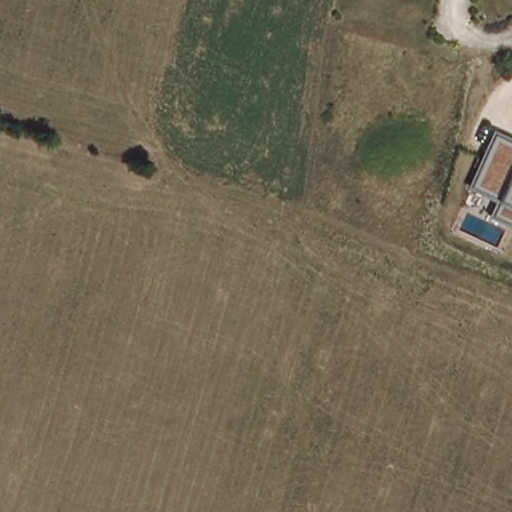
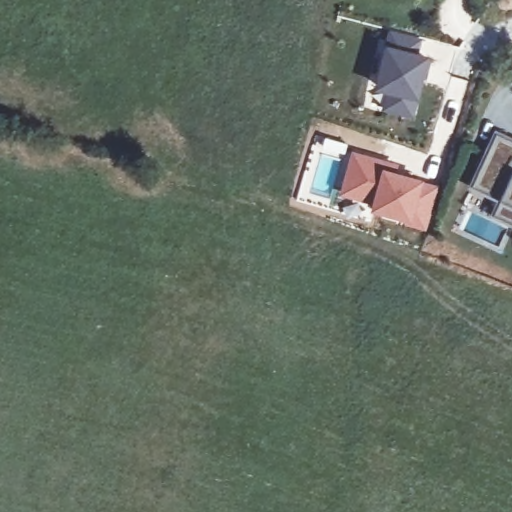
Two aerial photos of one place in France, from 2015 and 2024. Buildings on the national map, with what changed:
new [(388,27),(424,37),(420,52),(434,56),(427,79),(424,79),(414,118),(377,108),(381,91),(373,89),(388,27)]
unchanged [(496,202),(468,188),(494,131),(512,140),(512,228),(489,218),(496,202)]
new [(352,149),(388,159),(387,163),(439,183),(426,230),(370,210),(371,204),(339,195),(352,149)]

